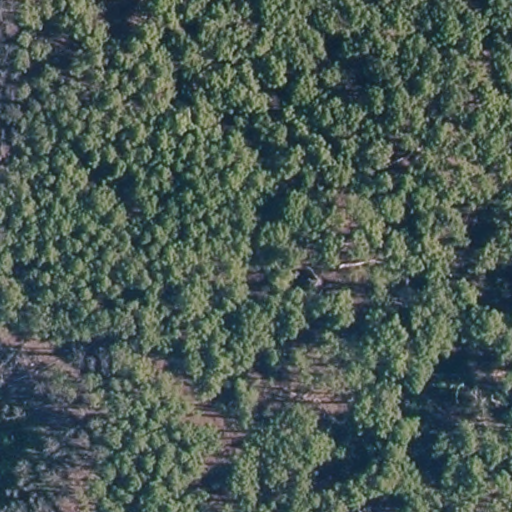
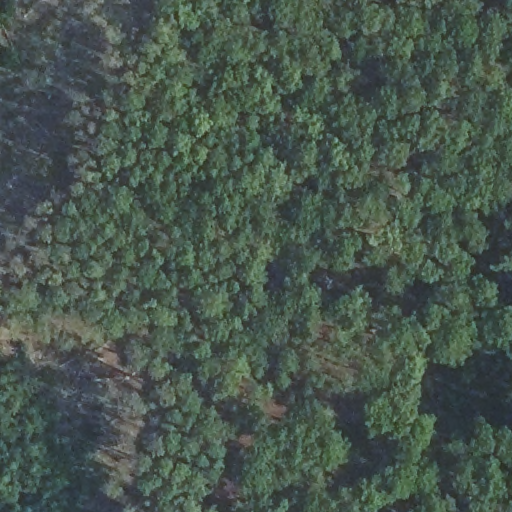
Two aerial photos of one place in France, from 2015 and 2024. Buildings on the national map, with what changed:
[]

